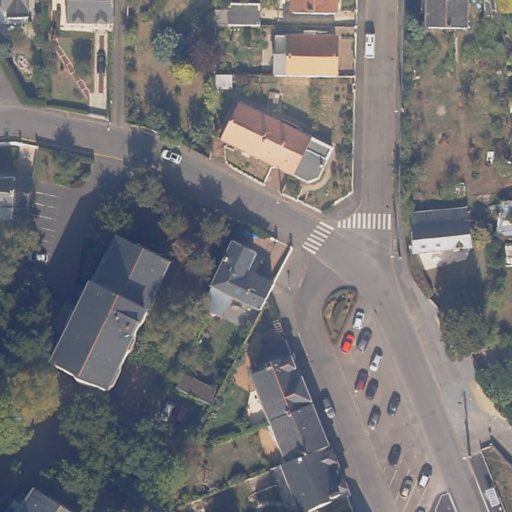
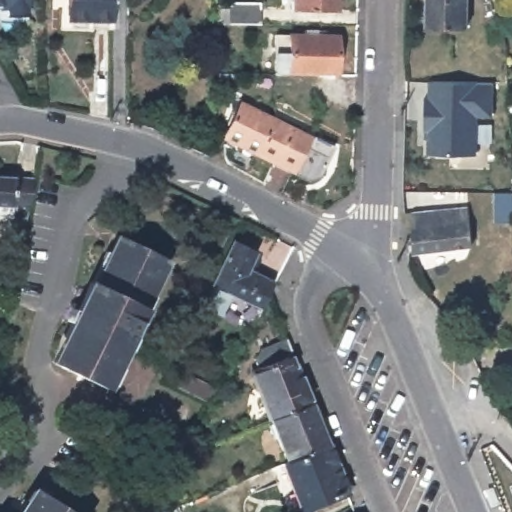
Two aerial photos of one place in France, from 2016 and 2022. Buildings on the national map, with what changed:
unchanged [(30,14),(11,15),(11,5),(0,5),(0,0),(30,0),(30,14)]
unchanged [(109,19),(64,19),(64,0),(109,0),(109,19)]
unchanged [(334,10),(289,10),(289,0),(334,0),(334,10)]
unchanged [(466,25),(429,24),(430,5),(427,5),(427,0),(467,0),(466,25)]
unchanged [(217,24),(217,2),(262,3),(262,24),(217,24)]
unchanged [(274,74),(275,36),(334,37),(334,75),(274,74)]
unchanged [(211,75),(211,72),(226,72),(226,85),(211,85),(211,75)]
new [(425,97),(430,97),(430,80),(492,81),(491,115),(476,115),(475,154),(428,153),(429,129),(424,129),(425,97)]
unchanged [(512,107),(510,107),(510,97),(512,97),(512,107)]
unchanged [(329,142),(314,175),(305,179),(221,141),(240,100),(329,142)]
unchanged [(0,210),(0,170),(27,171),(21,211),(0,210)]
demolished [(508,202),(512,202),(512,217),(508,217),(508,202)]
unchanged [(465,206),(470,245),(411,250),(409,212),(465,206)]
unchanged [(164,260),(104,386),(54,361),(66,336),(61,333),(88,280),(95,283),(117,237),(164,260)]
unchanged [(253,250),(244,267),(269,281),(251,318),(240,313),(246,300),(210,282),(230,239),(253,250)]
unchanged [(214,296),(209,308),(199,303),(205,291),(214,296)]
unchanged [(286,347),(309,408),(267,425),(248,376),(256,373),(253,365),(259,351),(284,342),(286,347)]
unchanged [(208,403),(174,387),(183,372),(216,387),(208,403)]
unchanged [(309,408),(325,450),(284,466),(267,425),(309,408)]
unchanged [(343,495),(300,512),(283,512),(267,473),(284,466),(325,450),(343,495)]
unchanged [(72,512),(8,512),(27,483),(72,512)]

